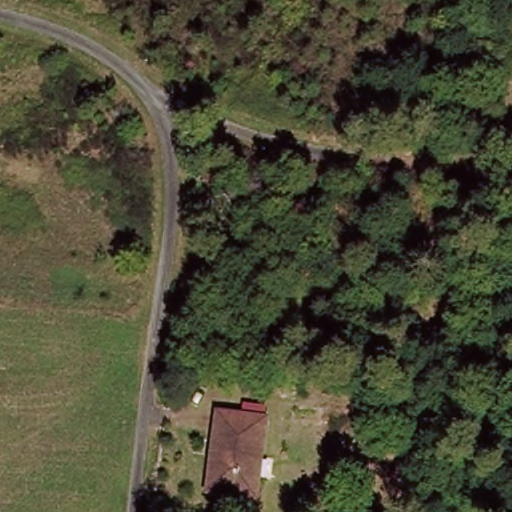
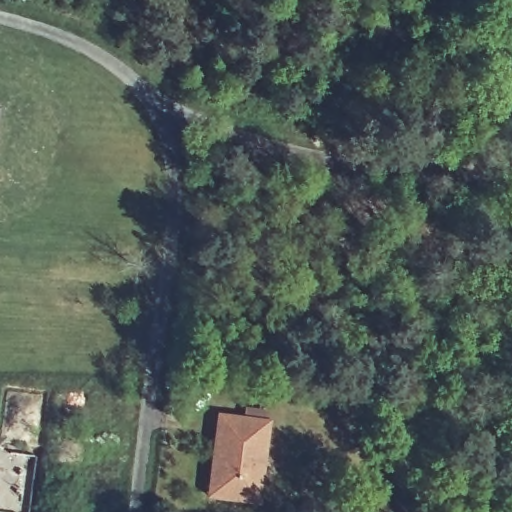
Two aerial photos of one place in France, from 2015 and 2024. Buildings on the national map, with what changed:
new [(2,106),(0,119),(0,106),(2,106)]
unchanged [(211,465),(215,424),(264,424),(261,495),(219,493),(210,494),(211,465)]
new [(38,457),(30,512),(0,512),(0,451),(38,457)]

